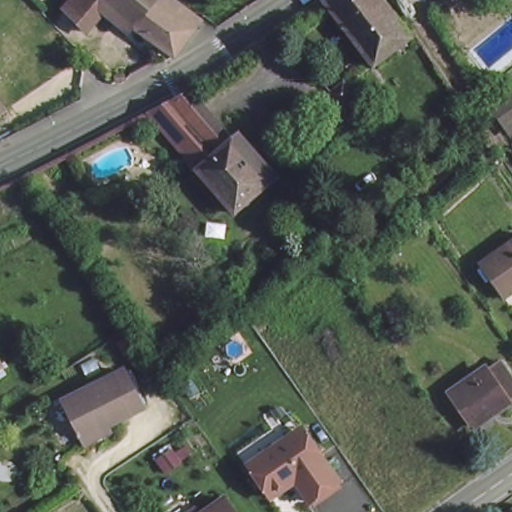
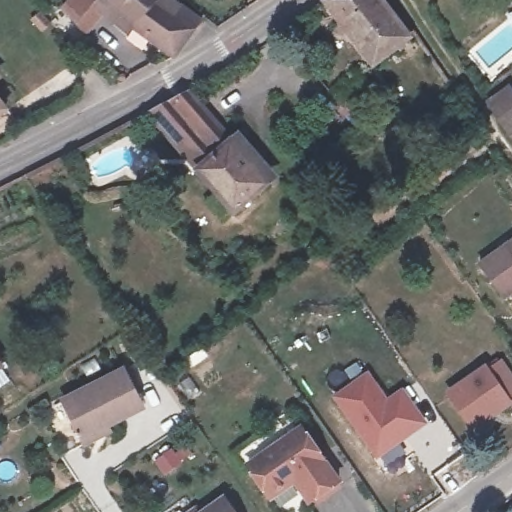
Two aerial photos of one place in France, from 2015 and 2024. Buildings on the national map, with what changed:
unchanged [(58,5),(62,0),(92,0),(79,21),(58,5)]
unchanged [(169,49),(97,0),(172,0),(174,1),(195,14),(175,45),(171,51),(169,49)]
unchanged [(373,61),(326,0),(381,0),(407,34),(373,61)]
demolished [(3,105),(0,102),(0,91),(20,78),(27,89),(3,105)]
unchanged [(341,79),(358,101),(350,108),(344,113),(327,91),(330,89),(341,79)]
unchanged [(193,88),(272,182),(239,209),(152,109),(193,88)]
unchanged [(509,134),(487,105),(506,90),(512,99),(512,131),(509,134)]
unchanged [(385,191),(372,199),(354,177),(367,169),(385,191)]
unchanged [(476,260),(512,235),(512,284),(498,294),(476,260)]
unchanged [(4,367),(0,369),(0,362),(4,367)]
unchanged [(87,438),(83,433),(64,394),(124,362),(144,401),(108,419),(112,424),(87,438)]
unchanged [(447,396),(494,362),(512,387),(512,396),(469,429),(447,396)]
new [(376,458),(333,398),(368,372),(389,399),(403,389),(427,423),(376,458)]
unchanged [(313,498),(299,477),(274,494),(252,461),(277,444),(305,425),(308,429),(342,479),(313,498)]
unchanged [(239,512),(205,512),(227,496),(239,512)]
unchanged [(198,509),(201,512),(193,512),(198,509)]

